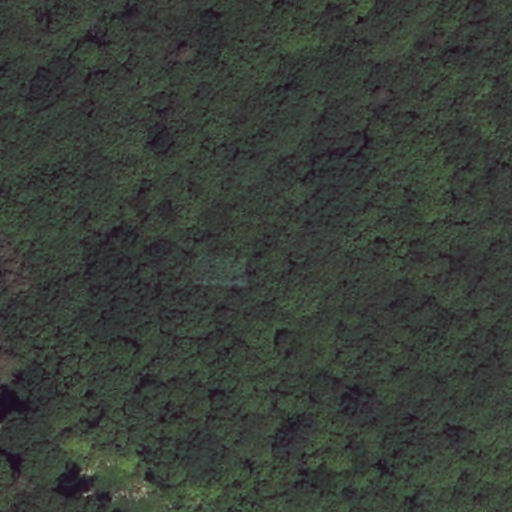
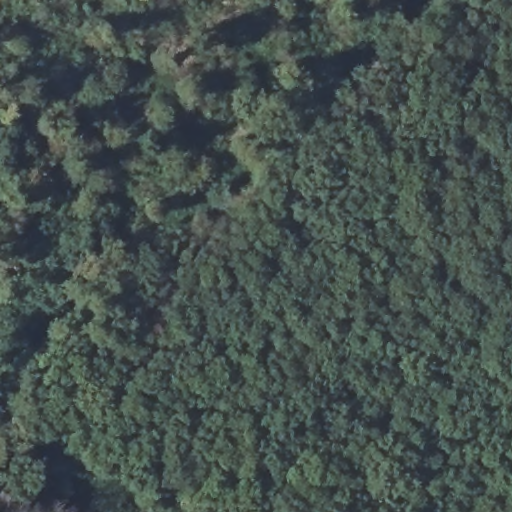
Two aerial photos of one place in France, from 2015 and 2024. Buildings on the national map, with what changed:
[]

